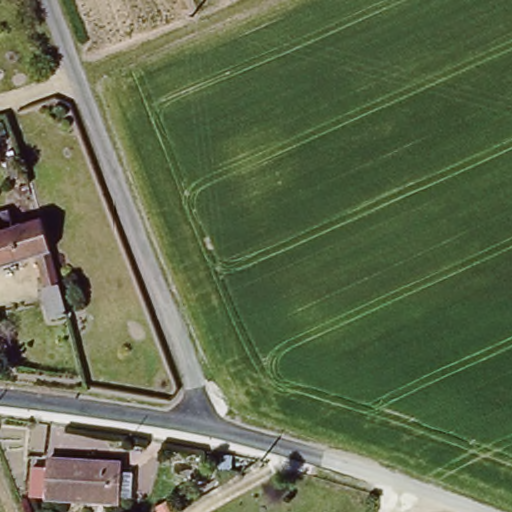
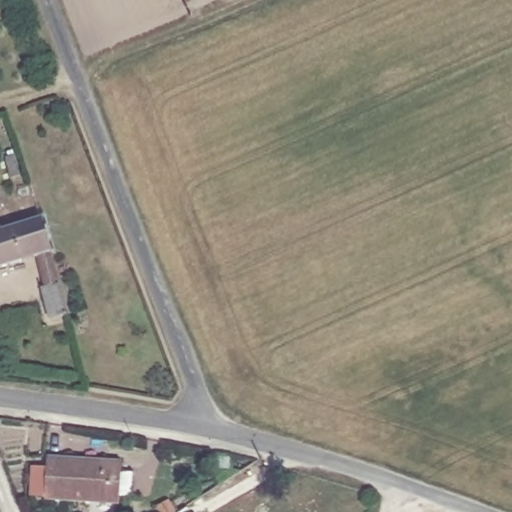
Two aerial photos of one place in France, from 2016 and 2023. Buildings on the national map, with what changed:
unchanged [(40,257),(0,269),(0,213),(11,210),(17,229),(46,220),(65,284),(50,288),(40,257)]
unchanged [(117,475),(129,476),(127,501),(115,501),(115,504),(27,500),(28,472),(42,472),(44,462),(117,465),(117,475)]

